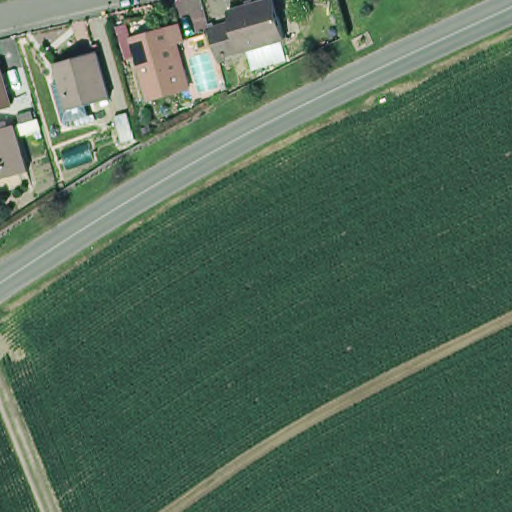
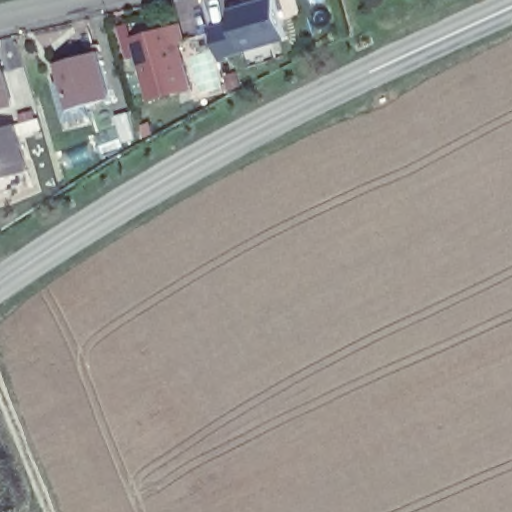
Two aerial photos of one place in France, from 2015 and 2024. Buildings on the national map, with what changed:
unchanged [(210,31),(235,25),(232,14),(280,0),(291,43),(245,57),(245,55),(220,62),(210,31)]
unchanged [(138,43),(185,29),(190,42),(182,45),(197,89),(160,103),(138,43)]
unchanged [(67,122),(55,87),(65,85),(58,67),(103,54),(116,99),(92,107),(96,113),(67,122)]
unchanged [(20,107),(0,113),(0,69),(8,66),(20,107)]
unchanged [(0,133),(32,125),(43,169),(2,178),(3,184),(0,185),(0,133)]

